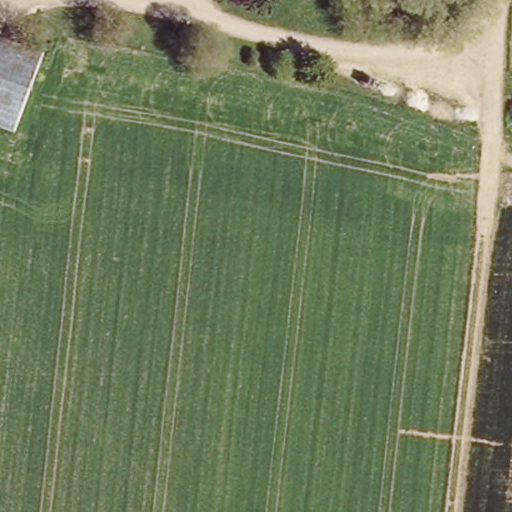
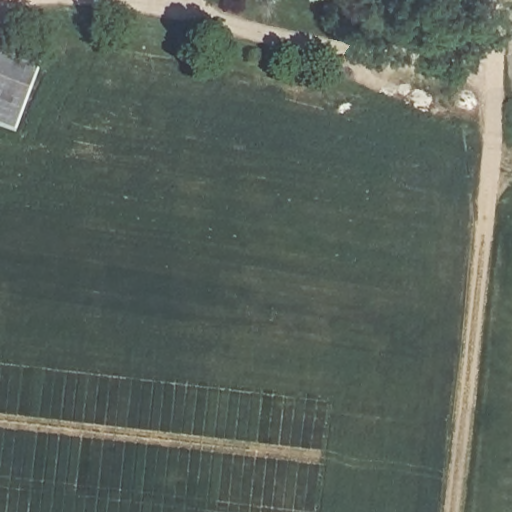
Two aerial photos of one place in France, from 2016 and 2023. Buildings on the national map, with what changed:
unchanged [(9,132),(0,129),(0,40),(37,54),(9,132)]

